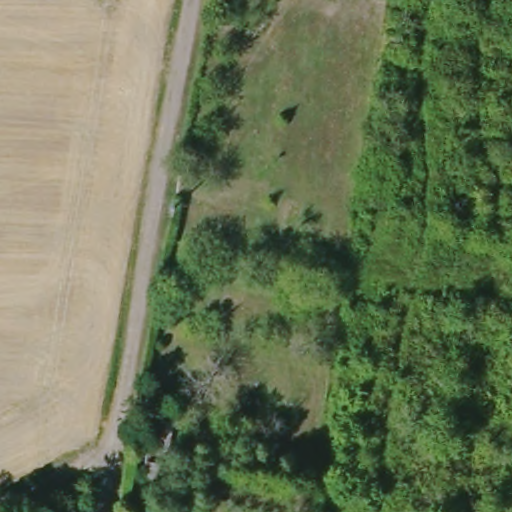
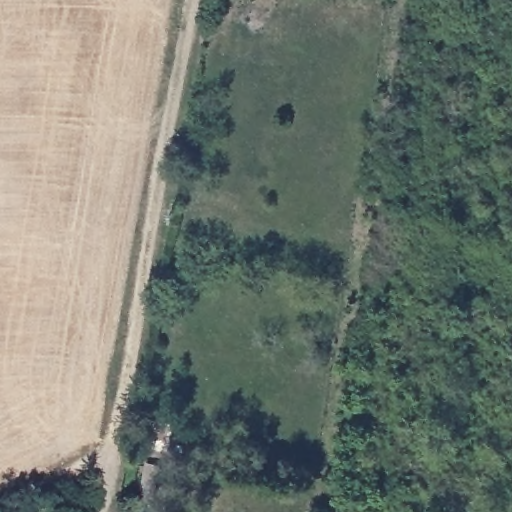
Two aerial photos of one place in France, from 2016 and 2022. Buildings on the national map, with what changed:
unchanged [(154,458),(172,463),(162,494),(145,489),(154,458)]

